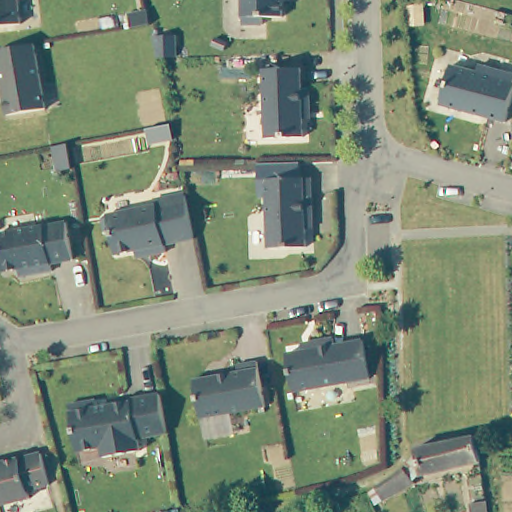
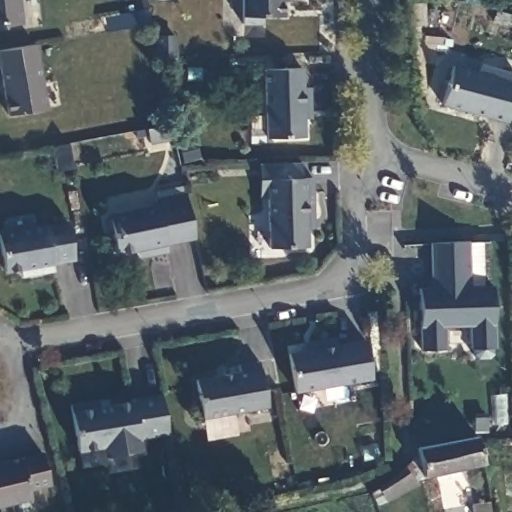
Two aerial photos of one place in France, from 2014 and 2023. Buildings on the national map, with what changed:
unchanged [(22,22),(0,23),(0,0),(20,0),(22,22)]
unchanged [(282,11),(260,10),(260,24),(242,24),(244,0),(281,0),(282,11)]
unchanged [(4,68),(9,67),(5,49),(36,45),(45,108),(11,114),(4,68)]
unchanged [(451,65),(475,72),(478,65),(512,73),(512,93),(505,123),(440,105),(451,65)]
unchanged [(264,66),(303,67),(302,95),(311,95),(311,126),(302,128),(302,134),(265,136),(264,66)]
unchanged [(267,176),(315,176),(312,235),(305,237),(306,244),(267,245),(267,176)]
unchanged [(119,209),(116,203),(128,200),(130,208),(186,194),(193,237),(165,244),(167,252),(135,257),(135,247),(114,252),(112,228),(107,230),(105,217),(119,209)]
unchanged [(67,222),(74,268),(50,273),(49,266),(32,271),(30,262),(5,269),(0,236),(67,222)]
new [(468,285),(491,287),(492,347),(470,348),(469,326),(443,327),(444,349),(421,349),(418,287),(430,287),(428,242),(465,241),(468,285)]
unchanged [(285,357),(305,354),(304,349),(343,341),(343,345),(365,342),(369,377),(291,392),(285,357)]
unchanged [(197,383),(259,370),(264,406),(201,417),(197,383)]
unchanged [(161,392),(167,432),(140,439),(142,447),(102,455),(102,445),(75,449),(69,408),(161,392)]
unchanged [(478,431),(483,458),(426,472),(422,448),(421,445),(478,431)]
unchanged [(51,507),(36,512),(35,512),(27,495),(0,501),(0,461),(39,449),(51,507)]
unchanged [(376,487),(395,477),(402,472),(408,465),(420,480),(380,500),(376,487)]
unchanged [(492,503),(493,512),(477,512),(476,506),(492,503)]

